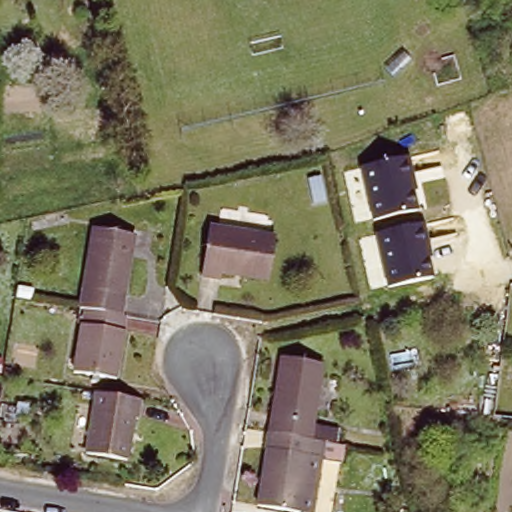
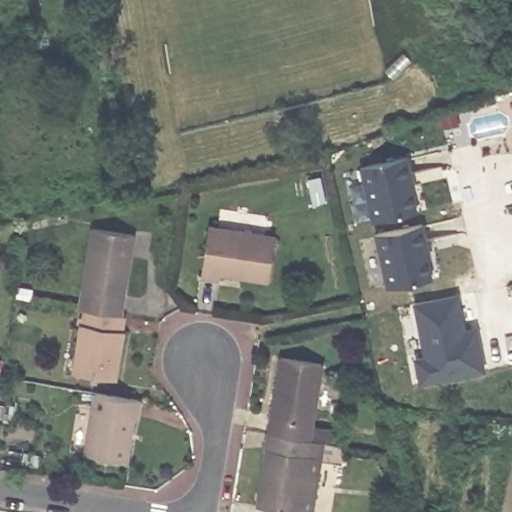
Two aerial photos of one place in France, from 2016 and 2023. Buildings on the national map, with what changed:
unchanged [(407,155),(412,176),(409,177),(417,210),(372,220),(362,166),(407,155)]
unchanged [(275,226),(272,269),(226,266),(225,274),(207,273),(210,222),(275,226)]
unchanged [(423,222),(427,242),(424,243),(432,277),(387,286),(375,233),(423,222)]
unchanged [(85,305),(97,225),(137,230),(127,311),(85,305)]
new [(420,385),(415,357),(424,355),(414,303),(459,292),(467,328),(480,325),(489,370),(420,385)]
unchanged [(127,311),(118,373),(77,367),(85,305),(127,311)]
unchanged [(265,433),(277,358),(317,365),(306,440),(265,433)]
unchanged [(142,396),(139,413),(134,412),(127,454),(86,447),(96,388),(142,396)]
unchanged [(252,505),(264,433),(265,433),(306,440),(338,445),(335,461),(315,457),(309,493),(306,512),(295,512),(252,505)]

